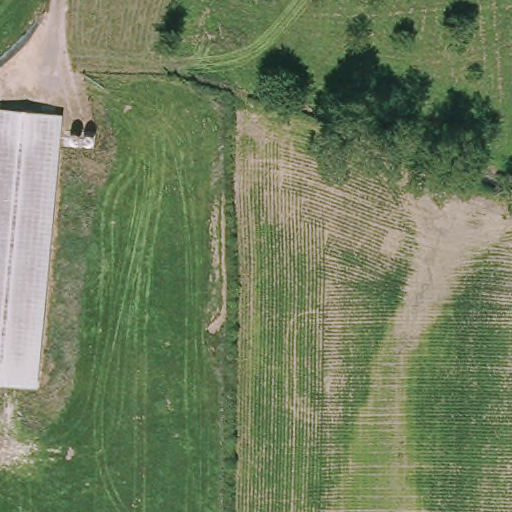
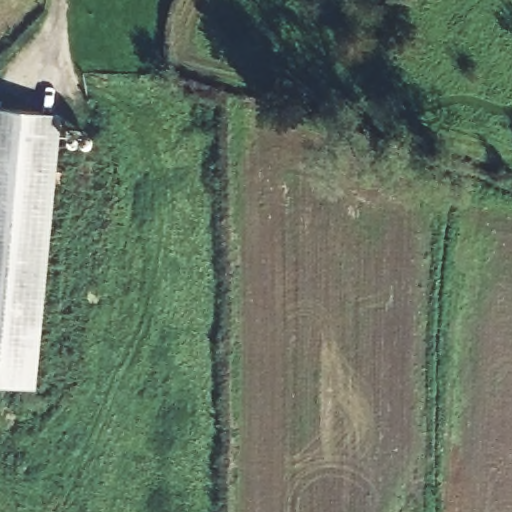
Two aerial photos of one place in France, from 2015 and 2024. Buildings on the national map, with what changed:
unchanged [(60,116),(33,391),(0,387),(0,110),(60,116)]

